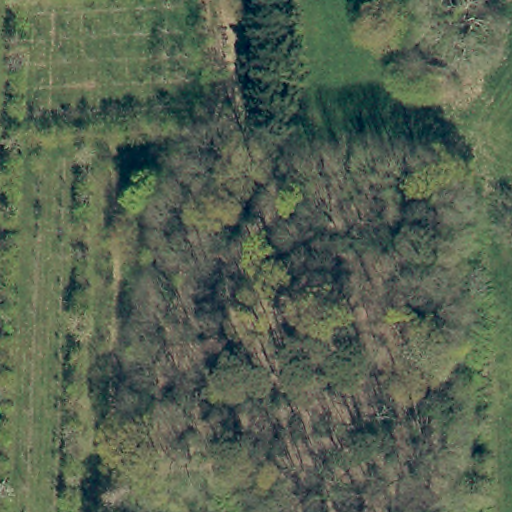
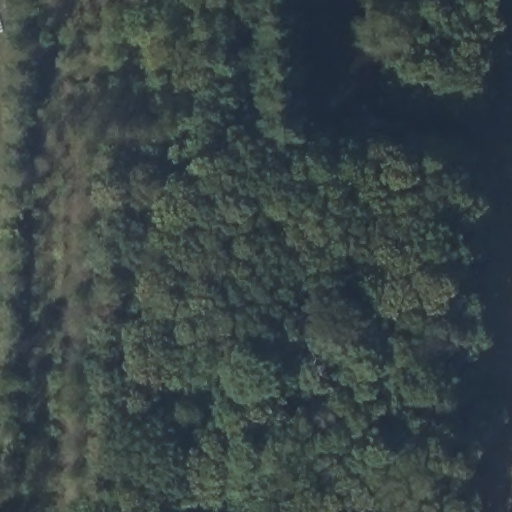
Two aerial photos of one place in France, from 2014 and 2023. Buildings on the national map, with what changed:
[]

